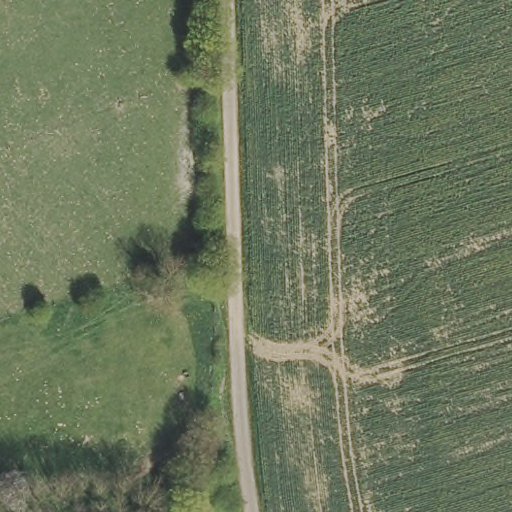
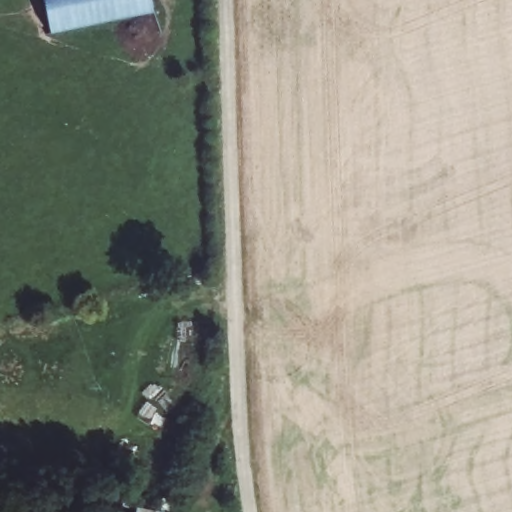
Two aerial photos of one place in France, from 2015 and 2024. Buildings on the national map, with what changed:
new [(151,0),(153,13),(51,34),(44,0),(151,0)]
new [(167,512),(135,512),(136,505),(167,512)]

